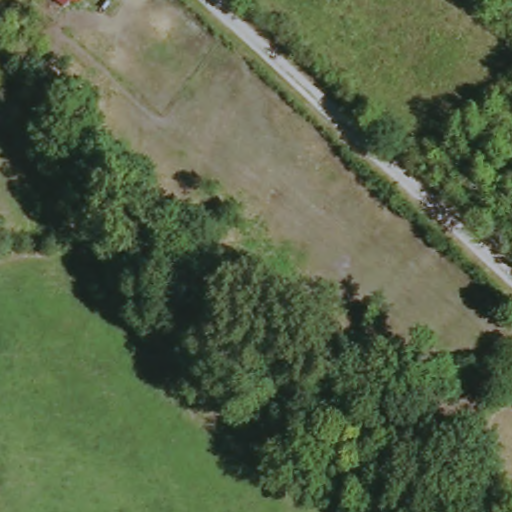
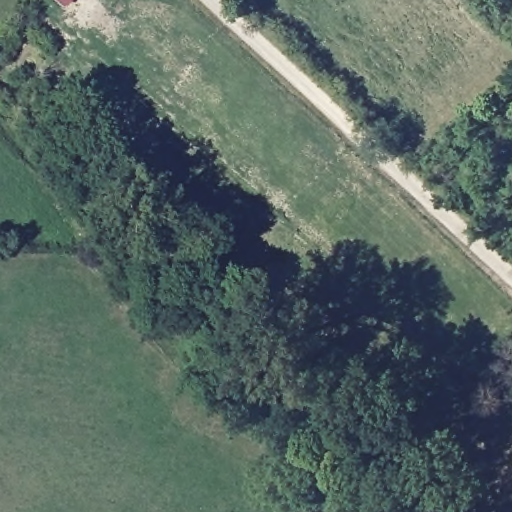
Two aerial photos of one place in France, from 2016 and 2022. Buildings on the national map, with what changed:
unchanged [(54,0),(72,0),(65,8),(54,0)]

